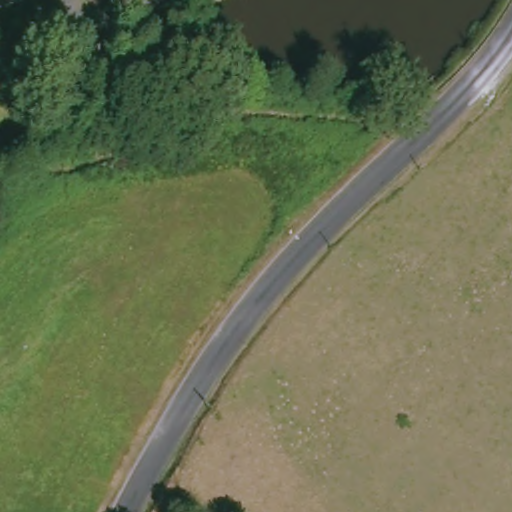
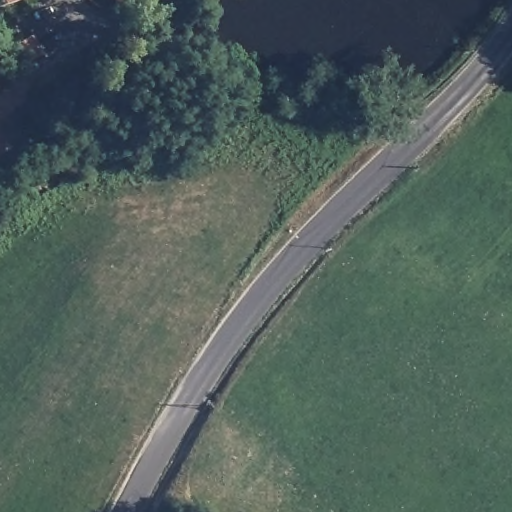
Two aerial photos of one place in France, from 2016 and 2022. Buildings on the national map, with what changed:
unchanged [(125,3),(124,0),(132,0),(125,3)]

